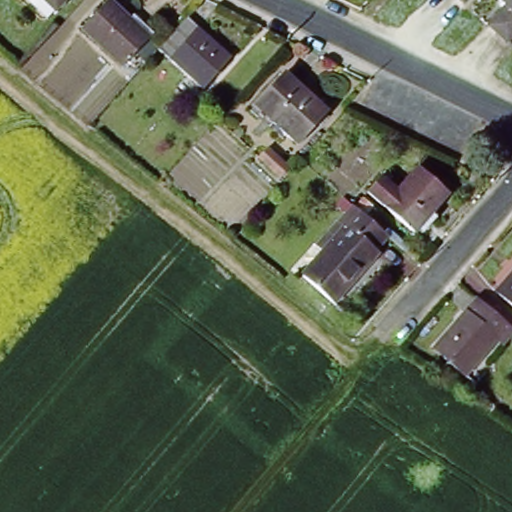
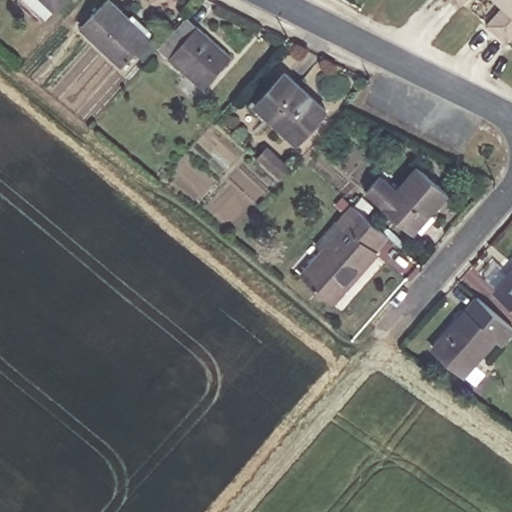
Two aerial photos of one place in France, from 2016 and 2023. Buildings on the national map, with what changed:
unchanged [(66,0),(56,10),(46,0),(66,0)]
unchanged [(110,0),(111,0),(150,37),(123,67),(82,28),(110,0)]
unchanged [(470,0),(463,8),(454,0),(470,0)]
unchanged [(488,31),(504,11),(492,0),(512,0),(512,43),(507,49),(488,31)]
unchanged [(203,90),(158,50),(149,60),(140,51),(151,39),(160,47),(187,17),(231,57),(203,90)]
unchanged [(256,107),(287,74),(328,111),(298,145),(256,107)]
unchanged [(258,159),(268,148),(289,167),(279,178),(258,159)]
unchanged [(368,202),(381,186),(398,200),(418,176),(448,202),(414,242),(368,202)]
unchanged [(388,240),(366,266),(368,267),(334,306),(304,280),(323,258),(316,252),(334,230),(336,233),(355,211),(388,240)]
unchanged [(512,279),(512,304),(500,293),(512,279)]
unchanged [(497,340),(464,377),(432,348),(478,298),(512,329),(512,332),(502,345),(497,340)]

